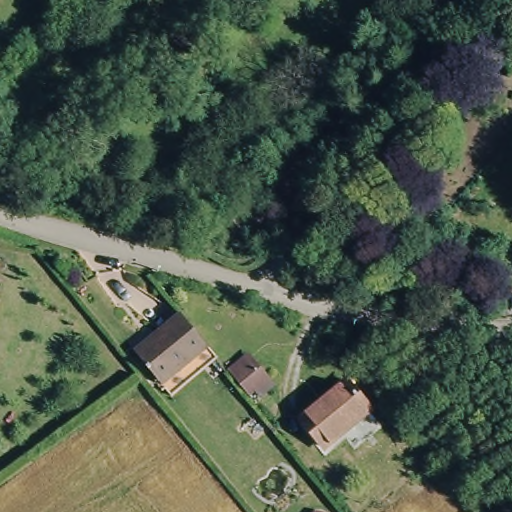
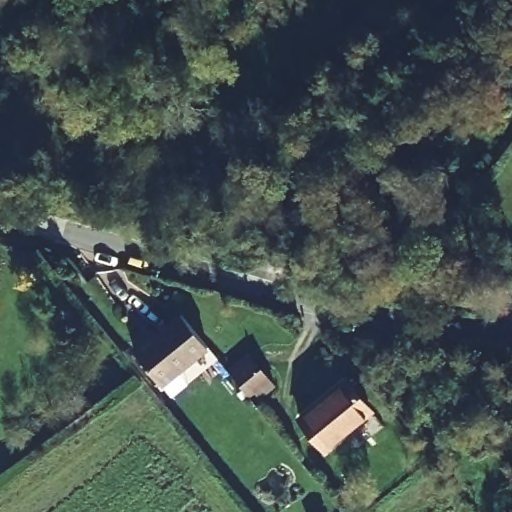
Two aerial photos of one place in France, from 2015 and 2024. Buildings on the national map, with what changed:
unchanged [(161,384),(135,351),(181,313),(208,345),(161,384)]
unchanged [(251,355),(276,385),(254,403),(231,374),(251,355)]
unchanged [(318,452),(295,425),(341,386),(364,414),(318,452)]

